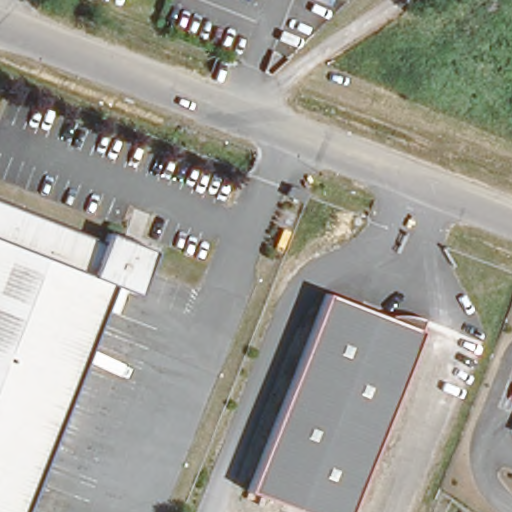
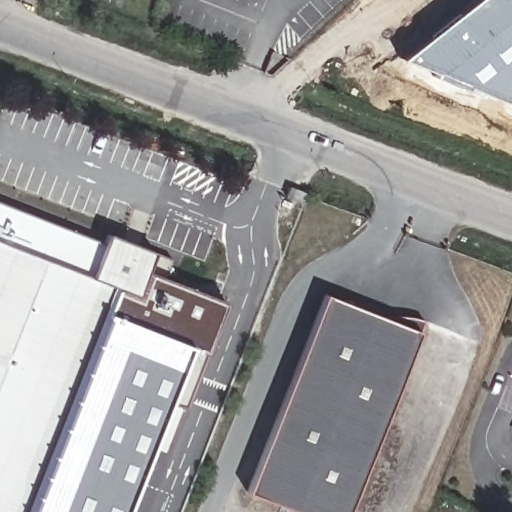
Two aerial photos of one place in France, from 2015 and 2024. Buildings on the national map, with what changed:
new [(403,58),(475,0),(512,0),(512,102),(403,58)]
unchanged [(68,230),(95,245),(99,235),(115,241),(113,246),(128,252),(129,247),(146,254),(127,300),(102,290),(19,512),(0,512),(0,203),(5,205),(3,210),(65,236),(68,230)]
new [(127,300),(140,268),(225,301),(205,352),(201,350),(182,405),(167,397),(123,512),(19,512),(102,290),(127,300)]
unchanged [(347,512),(288,512),(240,493),(313,292),(412,329),(347,512)]

